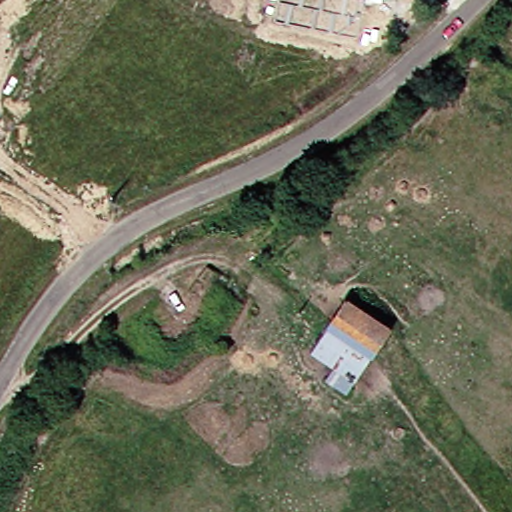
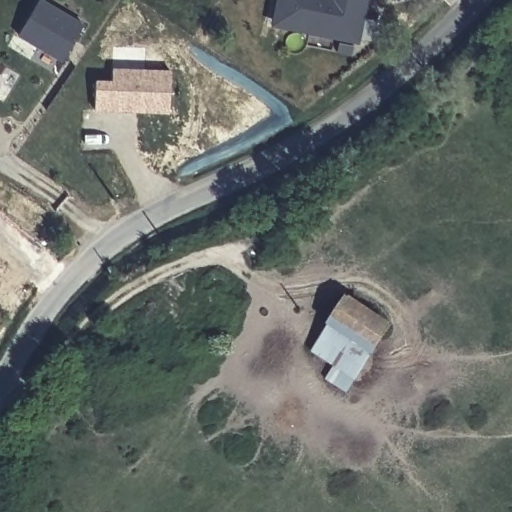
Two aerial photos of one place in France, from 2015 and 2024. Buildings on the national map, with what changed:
new [(85,26),(64,61),(19,34),(40,0),(41,0),(85,26)]
new [(362,40),(269,22),(274,0),(368,0),(362,40)]
new [(94,108),(94,81),(110,80),(110,67),(168,66),(169,107),(94,108)]
unchanged [(382,327),(367,351),(337,393),(316,378),(322,367),(302,352),(320,321),(336,296),(382,327)]

